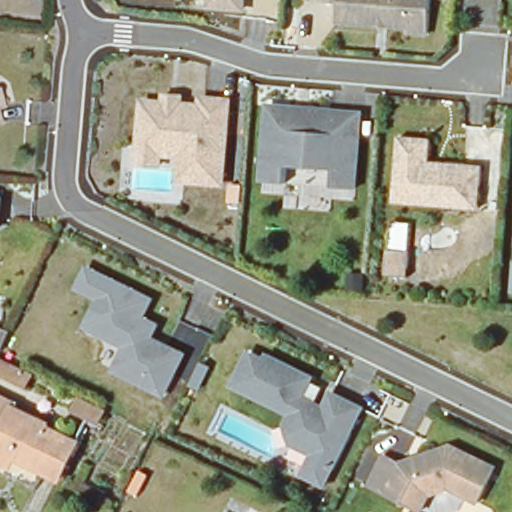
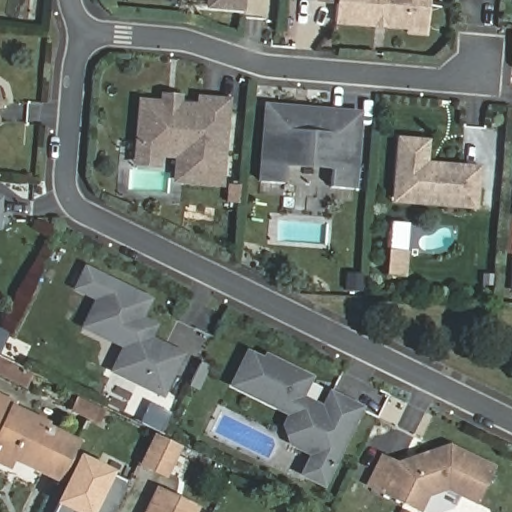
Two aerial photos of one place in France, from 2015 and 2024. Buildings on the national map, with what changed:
unchanged [(242,4),(209,2),(209,0),(242,0),(242,4)]
unchanged [(428,34),(408,32),(408,28),(337,22),(338,1),(319,0),(430,0),(428,34)]
unchanged [(182,159),(162,157),(161,168),(140,166),(141,149),(145,105),(166,107),(167,99),(182,100),(181,108),(203,110),(204,102),(231,104),(223,187),(186,184),(180,184),(182,159)]
unchanged [(362,113),(356,188),(334,187),(335,169),(328,161),(296,158),(288,166),(287,183),(264,181),(270,106),(362,113)]
unchanged [(396,184),(400,135),(432,138),(430,160),(483,165),(479,207),(445,204),(395,200),(396,184)]
unchanged [(16,216),(0,230),(0,202),(4,202),(16,216)]
unchanged [(410,256),(407,281),(389,279),(391,254),(410,256)]
unchanged [(121,289),(133,295),(134,292),(149,299),(138,322),(148,327),(144,336),(161,345),(159,350),(178,359),(161,393),(112,369),(124,345),(101,334),(83,325),(96,297),(78,288),(88,269),(123,287),(121,289)]
unchanged [(300,474),(310,454),(289,444),(283,425),(288,414),(230,385),(246,352),(262,360),(264,355),(308,377),(306,382),(317,388),(313,395),(309,403),(320,408),(328,393),(358,408),(331,464),(321,484),(300,474)]
unchanged [(0,374),(0,361),(24,372),(18,383),(0,374)]
unchanged [(194,392),(187,388),(192,378),(197,367),(205,371),(194,392)]
unchanged [(12,457),(7,467),(0,464),(0,399),(9,403),(6,408),(76,441),(58,480),(38,470),(12,457)]
unchanged [(101,412),(96,423),(71,412),(77,400),(101,412)]
new [(160,437),(183,448),(170,475),(147,464),(160,437)]
unchanged [(496,467),(479,502),(449,488),(430,494),(422,510),(370,484),(386,454),(403,462),(424,455),(452,445),(496,467)]
new [(128,482),(113,512),(53,512),(80,458),(128,482)]
new [(195,509),(194,512),(146,512),(156,490),(195,509)]
unchanged [(409,512),(405,512),(406,510),(409,512)]

